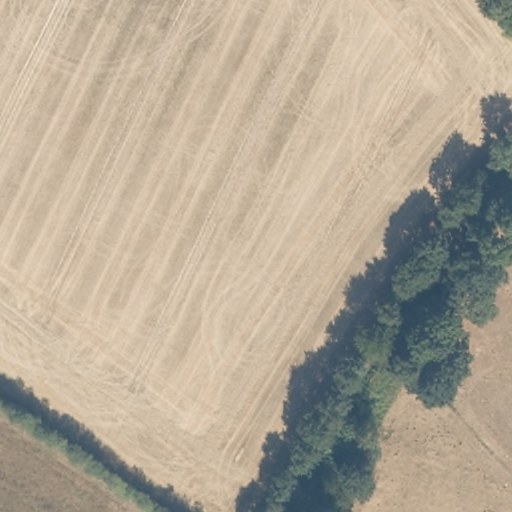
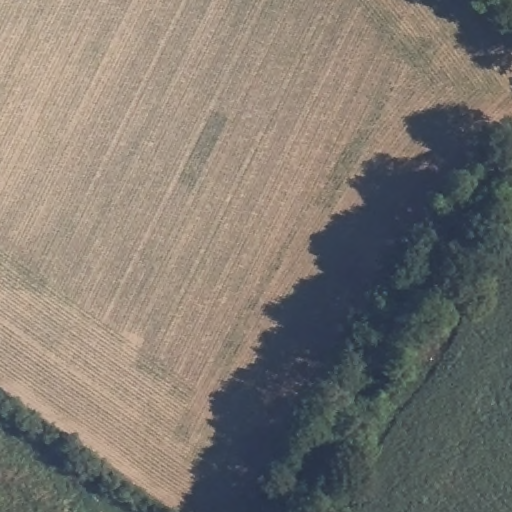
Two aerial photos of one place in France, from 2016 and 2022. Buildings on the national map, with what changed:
[]

